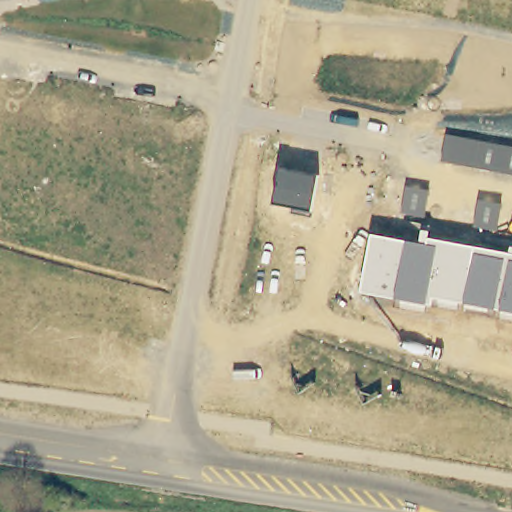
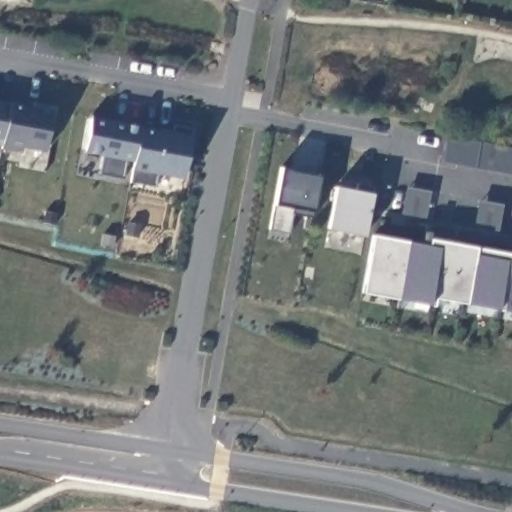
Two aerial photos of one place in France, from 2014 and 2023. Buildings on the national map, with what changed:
new [(0,131),(0,103),(6,104),(0,131)]
new [(45,152),(22,147),(21,151),(1,147),(10,103),(52,110),(45,152)]
new [(137,126),(130,160),(127,160),(123,177),(101,173),(104,156),(84,152),(92,118),(137,126)]
new [(172,132),(175,123),(195,127),(186,177),(158,174),(156,185),(132,181),(135,168),(131,168),(139,127),(172,132)]
unchanged [(443,163),(448,134),(512,145),(512,174),(443,163)]
unchanged [(313,212),(274,205),(281,168),(321,176),(313,212)]
unchanged [(402,214),(407,186),(431,190),(427,218),(402,214)]
new [(374,196),(365,237),(326,229),(336,188),(374,196)]
unchanged [(473,228),(478,199),(502,203),(498,231),(473,228)]
unchanged [(428,298),(426,306),(363,294),(372,233),(421,242),(423,234),(512,251),(512,313),(428,298)]

